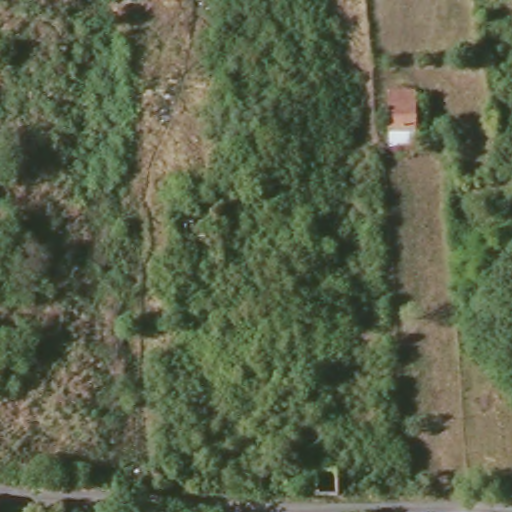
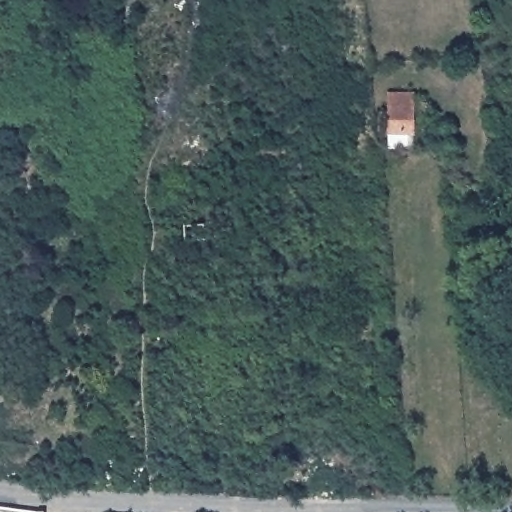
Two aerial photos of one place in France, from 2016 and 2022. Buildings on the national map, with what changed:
unchanged [(417,90),(415,150),(386,149),(386,89),(417,90)]

